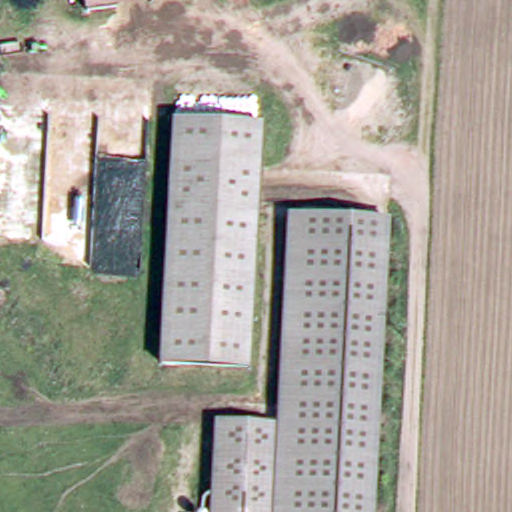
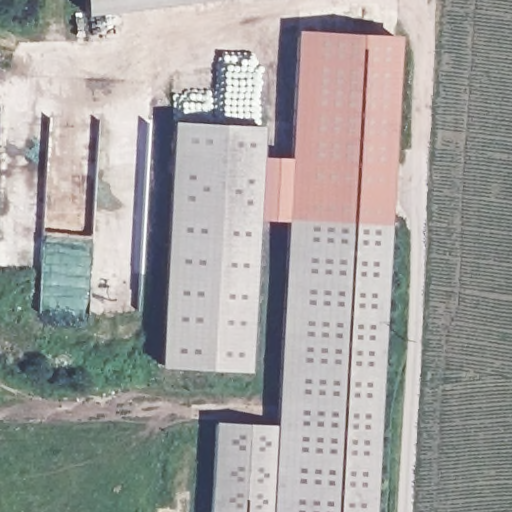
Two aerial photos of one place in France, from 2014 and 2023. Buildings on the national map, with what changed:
unchanged [(85,11),(83,0),(175,0),(85,11)]
new [(289,212),(288,221),(257,220),(260,157),(290,157),(297,30),(398,35),(392,219),(289,212)]
unchanged [(250,364),(165,359),(176,126),(261,129),(250,364)]
unchanged [(277,422),(289,212),(392,219),(377,512),(211,512),(216,418),(277,422)]

